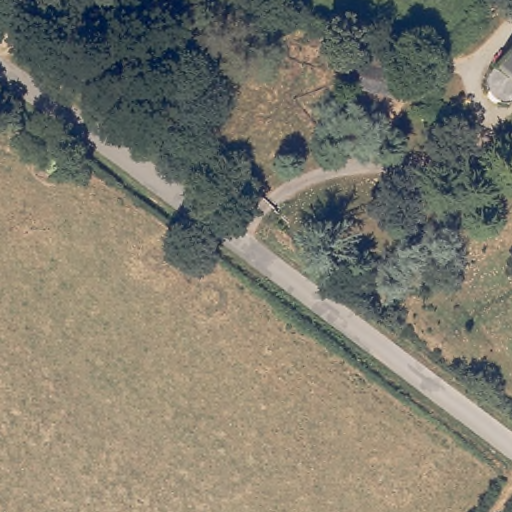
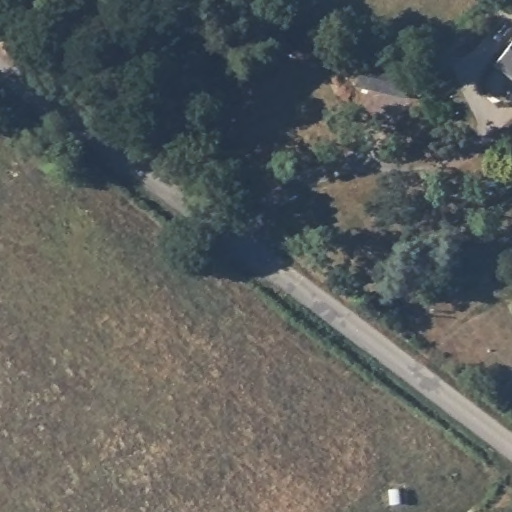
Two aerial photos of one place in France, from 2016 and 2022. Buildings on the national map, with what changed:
unchanged [(512,38),(512,76),(494,61),(512,38)]
unchanged [(352,91),(361,53),(413,66),(406,100),(352,91)]

